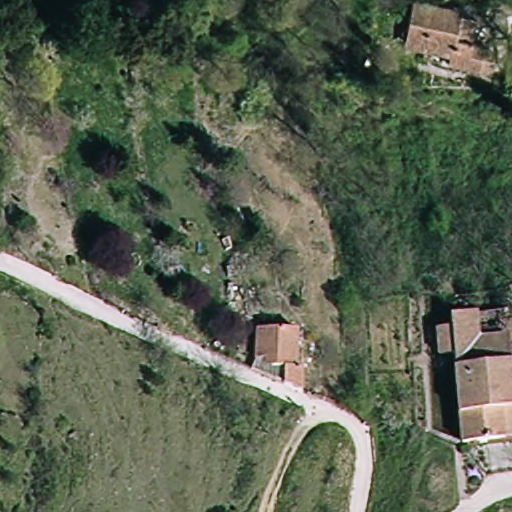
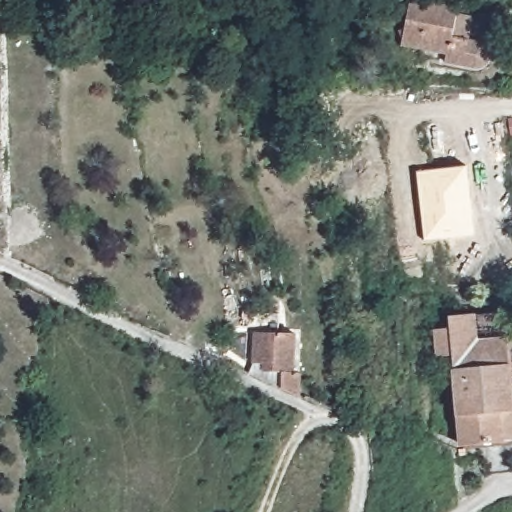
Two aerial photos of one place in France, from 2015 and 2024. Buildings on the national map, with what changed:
unchanged [(414,0),(439,0),(485,12),(483,23),(499,37),(494,61),(443,52),(445,40),(408,29),(414,0)]
new [(425,241),(417,171),(467,166),(474,236),(425,241)]
unchanged [(501,440),(460,442),(455,361),(442,362),(440,342),(453,342),(452,329),(502,325),(510,412),(512,412),(512,439),(501,440)]
unchanged [(312,374),(312,395),(261,374),(259,340),(300,337),(302,372),(312,374)]

